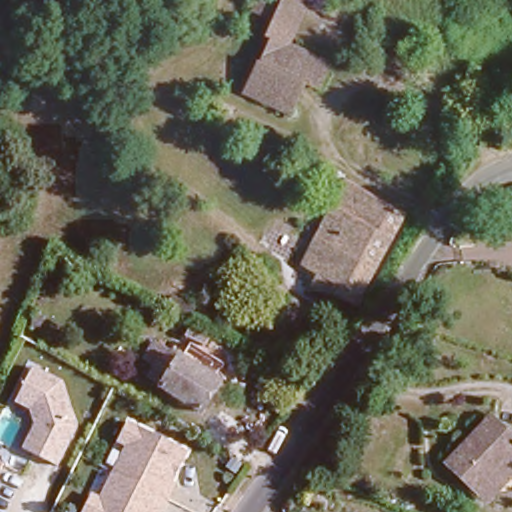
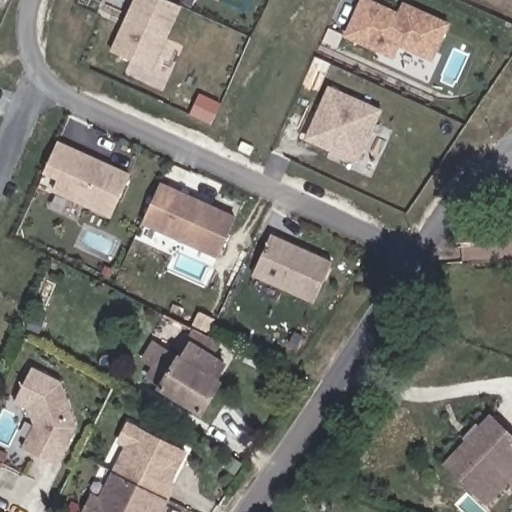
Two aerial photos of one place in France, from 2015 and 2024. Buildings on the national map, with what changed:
new [(110,51),(133,0),(167,0),(181,6),(152,71),(110,51)]
demolished [(285,0),(305,0),(302,8),(285,0)]
new [(399,47),(393,60),(343,37),(360,0),(370,0),(398,11),(402,1),(450,22),(432,62),(399,47)]
demolished [(274,30),(287,36),(332,57),(320,81),(307,75),(262,54),(274,30)]
new [(358,164),(304,140),(329,85),(383,109),(358,164)]
new [(131,174),(110,218),(52,191),(57,179),(43,173),(58,141),(131,174)]
demolished [(345,174),(402,204),(374,261),(316,232),(345,174)]
new [(236,216),(216,257),(142,224),(160,182),(236,216)]
demolished [(374,261),(359,289),(352,286),(346,297),(310,280),(316,266),(302,258),(316,232),(374,261)]
new [(332,261),(313,304),(251,276),(271,233),(332,261)]
unchanged [(158,378),(160,374),(146,367),(151,358),(137,348),(147,332),(216,374),(199,403),(158,378)]
unchanged [(192,335),(209,342),(204,353),(187,345),(192,335)]
unchanged [(52,461),(46,462),(24,451),(36,427),(31,412),(16,404),(29,379),(34,370),(63,384),(67,399),(77,430),(60,465),(52,461)]
demolished [(0,441),(0,415),(16,423),(5,444),(0,441)]
unchanged [(496,420),(512,436),(512,467),(485,494),(453,464),(496,420)]
unchanged [(113,472),(127,445),(119,441),(126,427),(129,422),(185,452),(182,456),(168,483),(172,485),(164,500),(158,512),(154,512),(153,512),(82,512),(90,496),(98,500),(113,472)]
new [(0,471),(0,463),(3,464),(0,471)]

